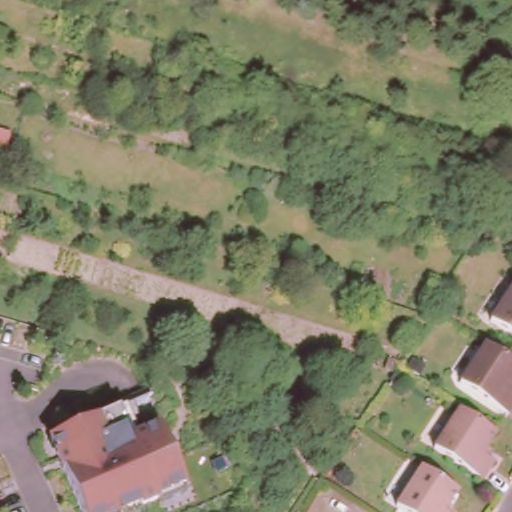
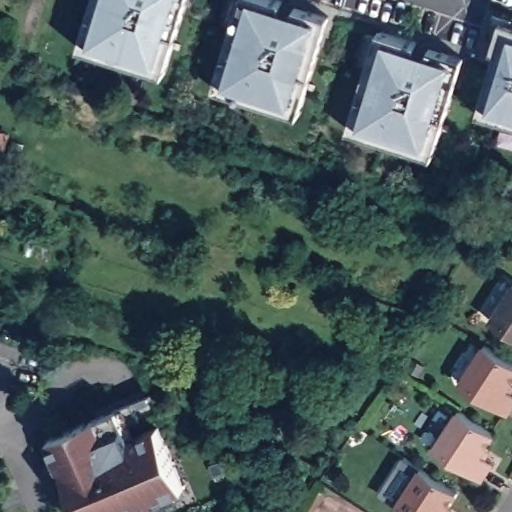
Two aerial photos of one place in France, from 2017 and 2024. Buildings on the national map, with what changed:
new [(80,50),(96,0),(189,0),(166,77),(80,50)]
new [(300,120),(215,92),(243,0),(275,0),(330,17),(300,120)]
new [(512,20),(512,124),(479,112),(500,50),(495,47),(503,17),(512,20)]
new [(465,57),(435,160),(350,133),(381,31),(465,57)]
unchanged [(486,313),(511,275),(512,275),(512,330),(486,313)]
unchanged [(508,385),(512,388),(512,394),(503,408),(456,377),(481,338),(512,358),(512,368),(508,375),(512,377),(512,379),(508,385)]
unchanged [(485,452),(492,457),(480,475),(431,442),(457,403),(494,427),(485,442),(489,445),(485,452)]
unchanged [(117,407),(129,436),(157,422),(185,490),(131,512),(81,512),(47,438),(117,407)]
unchanged [(446,509),(451,512),(411,512),(393,500),(420,460),(456,484),(446,500),(450,502),(446,509)]

